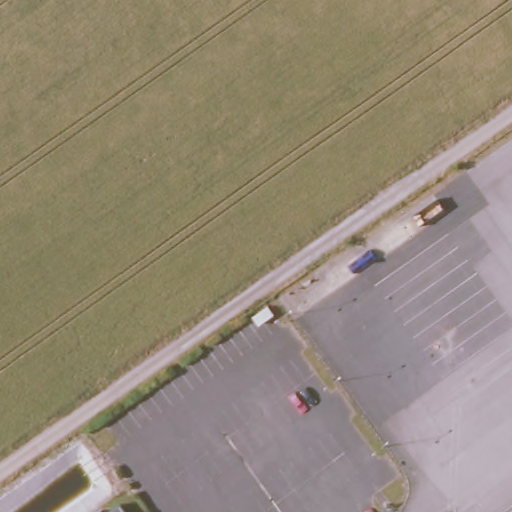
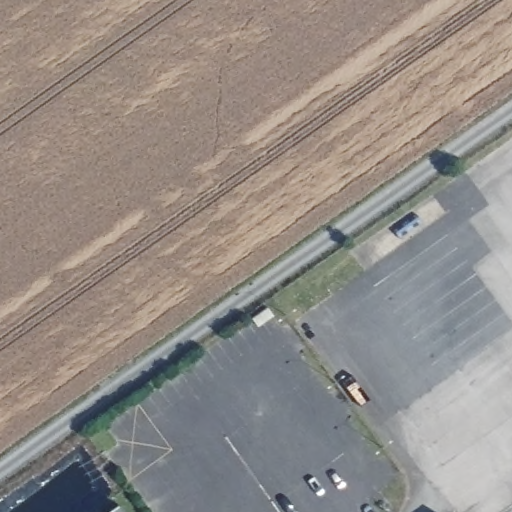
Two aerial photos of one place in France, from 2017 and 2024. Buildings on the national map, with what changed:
unchanged [(119,505),(123,512),(109,512),(119,505)]

